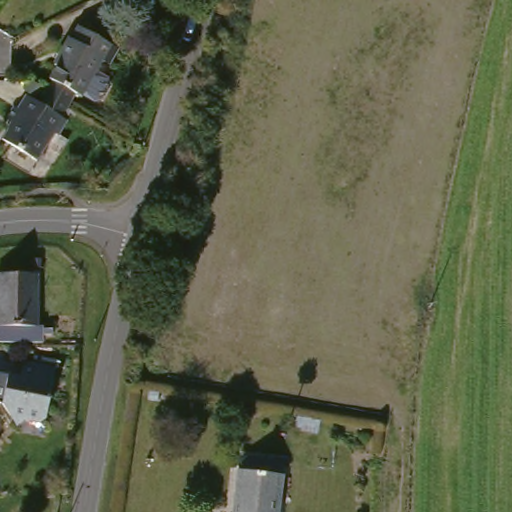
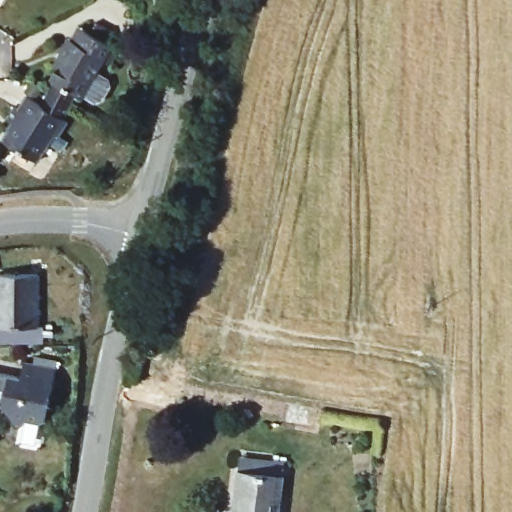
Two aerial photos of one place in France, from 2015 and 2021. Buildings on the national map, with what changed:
unchanged [(91,110),(84,111),(71,103),(71,104),(46,89),(57,72),(48,67),(63,44),(68,46),(75,35),(80,38),(87,43),(93,33),(106,42),(99,51),(104,54),(112,60),(101,75),(94,70),(87,80),(99,89),(100,96),(91,110)]
unchanged [(69,105),(61,119),(65,122),(56,136),(52,134),(35,161),(1,140),(11,123),(4,119),(13,107),(16,109),(25,96),(39,104),(47,91),(69,105)]
unchanged [(36,270),(35,321),(43,320),(43,340),(0,340),(0,270),(36,270)]
unchanged [(22,364),(57,369),(49,420),(40,424),(24,422),(19,430),(4,406),(11,377),(20,378),(22,364)]
unchanged [(281,474),(278,512),(234,512),(238,467),(281,474)]

